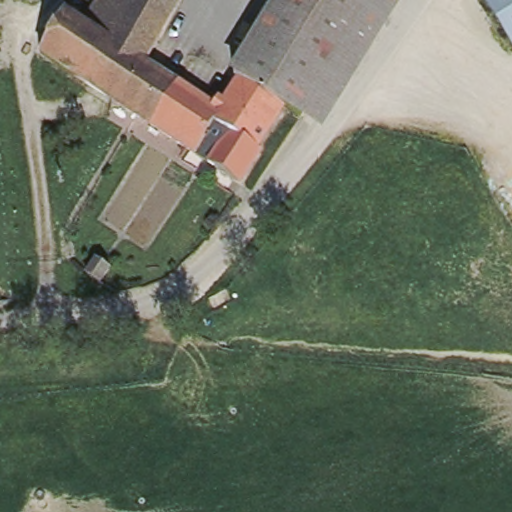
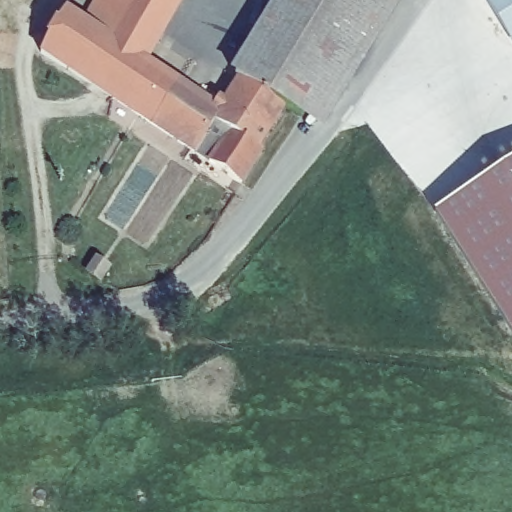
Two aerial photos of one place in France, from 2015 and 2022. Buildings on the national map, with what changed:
unchanged [(91,0),(175,0),(140,62),(78,23),(91,0)]
unchanged [(277,0),(368,0),(296,117),(280,106),(235,79),(230,77),(277,0)]
unchanged [(296,117),(368,0),(396,0),(317,129),(296,117)]
unchanged [(494,0),(512,0),(512,28),(494,0)]
unchanged [(60,11),(78,23),(140,62),(113,102),(36,53),(60,11)]
unchanged [(140,62),(215,110),(235,79),(280,106),(265,129),(238,110),(205,163),(113,102),(140,62)]
unchanged [(238,110),(265,129),(253,147),(257,149),(235,184),(205,163),(238,110)]
new [(512,176),(512,337),(433,214),(506,166),(512,176)]
unchanged [(110,268),(100,282),(86,272),(96,258),(110,268)]

